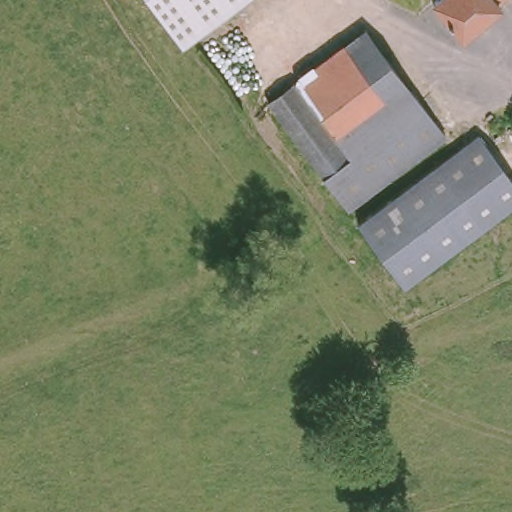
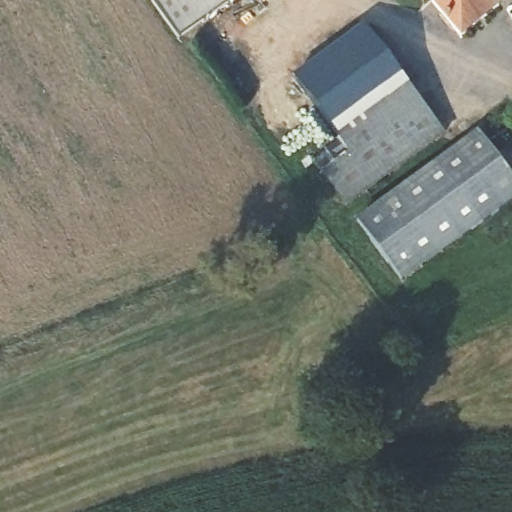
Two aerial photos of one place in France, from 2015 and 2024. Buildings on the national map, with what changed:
unchanged [(240,0),(179,44),(148,0),(240,0)]
unchanged [(503,9),(460,36),(433,0),(508,0),(500,5),(503,9)]
unchanged [(365,26),(447,135),(349,206),(315,162),(339,144),(292,81),(365,26)]
unchanged [(267,101),(292,81),(339,144),(315,162),(267,101)]
unchanged [(512,207),(405,284),(362,223),(482,136),(512,177),(512,207)]

